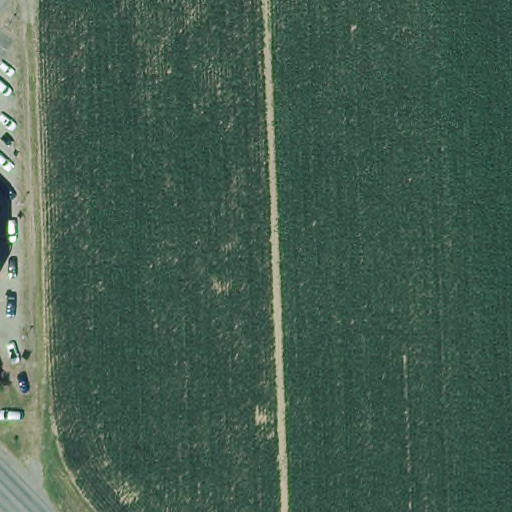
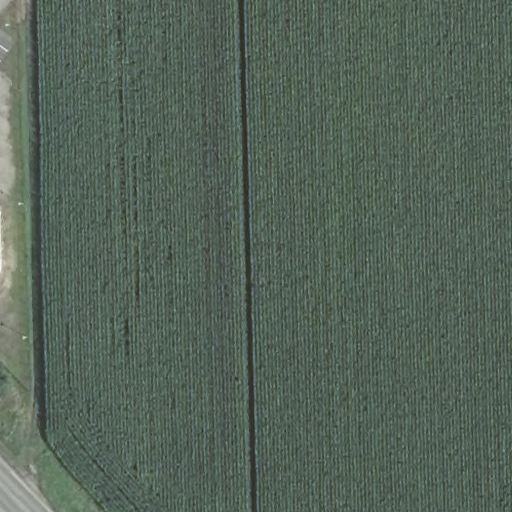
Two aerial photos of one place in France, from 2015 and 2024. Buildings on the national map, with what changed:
unchanged [(3,263),(2,277),(0,282),(0,204),(1,206),(3,263)]

